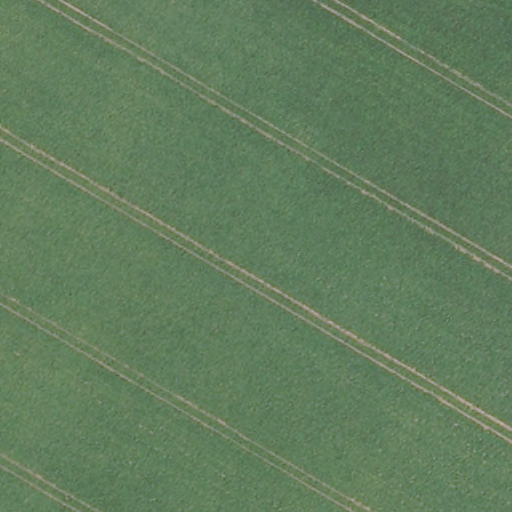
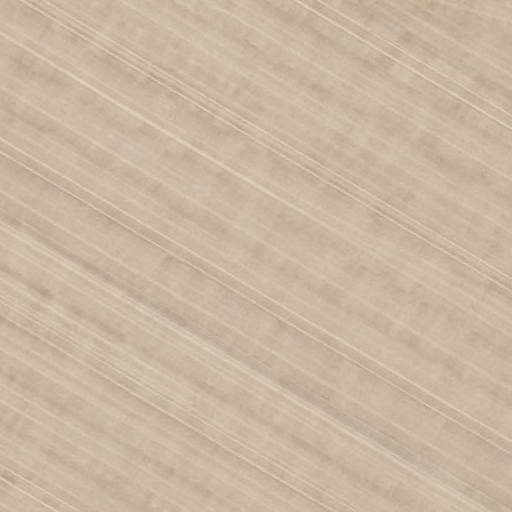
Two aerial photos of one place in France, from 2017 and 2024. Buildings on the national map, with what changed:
[]

